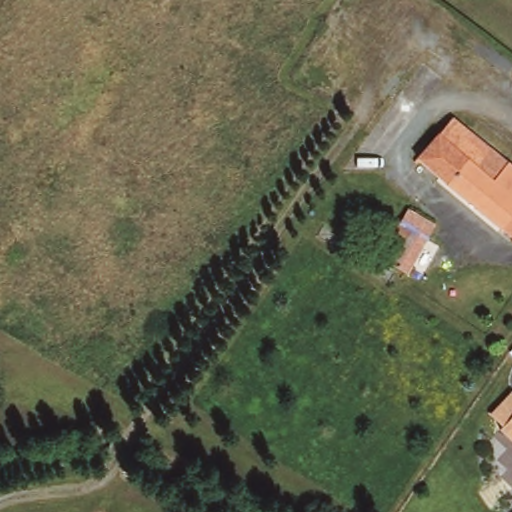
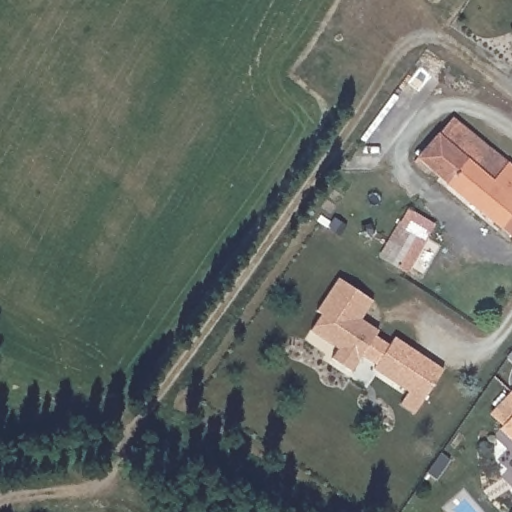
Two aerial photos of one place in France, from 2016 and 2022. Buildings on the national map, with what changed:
unchanged [(453,119),(512,170),(512,235),(418,154),(453,119)]
unchanged [(411,206),(437,221),(409,270),(383,256),(411,206)]
new [(374,300),(362,320),(380,331),(377,335),(390,343),(395,336),(442,368),(413,415),(400,405),(408,391),(373,367),(376,364),(362,356),(352,371),(331,359),(338,349),(310,331),(321,314),(317,311),(338,278),(374,300)]
unchanged [(502,433),(505,429),(489,417),(492,415),(511,392),(512,394),(512,442),(502,433)]

